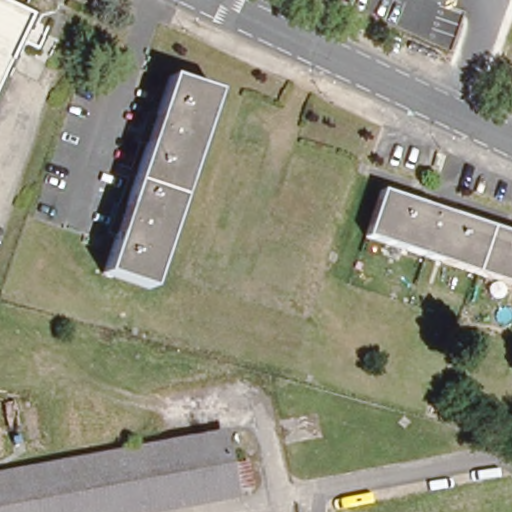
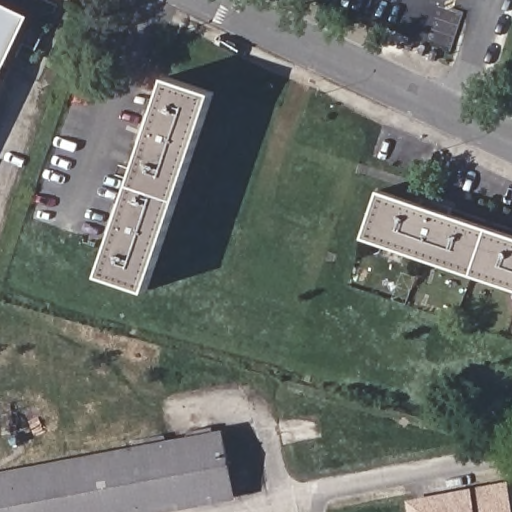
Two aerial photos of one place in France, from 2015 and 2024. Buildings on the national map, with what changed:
unchanged [(0,82),(0,1),(32,16),(0,82)]
unchanged [(102,277),(111,251),(115,237),(107,235),(115,205),(123,206),(130,180),(133,165),(136,165),(139,143),(133,142),(141,111),(149,113),(156,91),(161,73),(212,87),(155,290),(102,277)]
unchanged [(370,243),(385,196),(430,210),(432,202),(461,209),(458,219),(512,235),(512,287),(370,243)]
unchanged [(0,474),(220,429),(232,492),(131,512),(0,512),(0,474)]
new [(509,481),(512,497),(512,512),(409,512),(407,501),(472,488),(509,481)]

